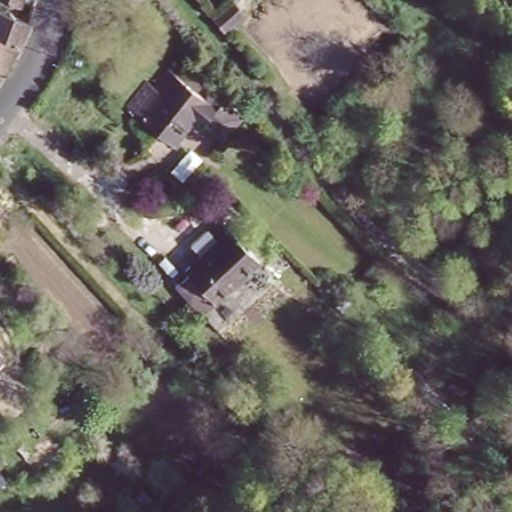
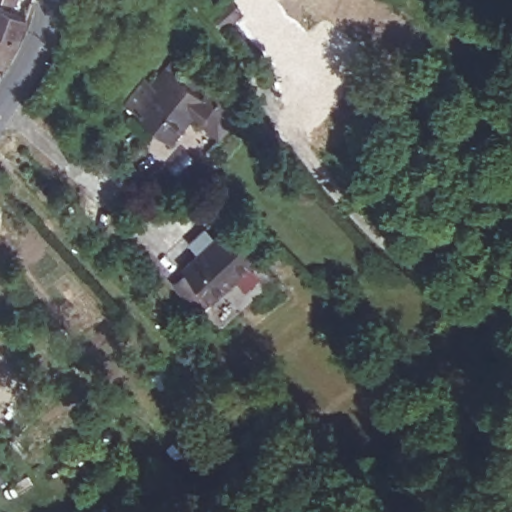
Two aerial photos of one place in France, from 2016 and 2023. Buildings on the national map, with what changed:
unchanged [(222,25),(212,14),(225,2),(227,0),(228,0),(238,10),(235,13),(245,22),(230,36),(222,25)]
unchanged [(27,19),(26,20),(24,28),(20,35),(17,43),(0,35),(0,10),(27,19)]
unchanged [(174,74),(207,100),(180,132),(148,105),(174,74)]
unchanged [(181,274),(197,259),(237,222),(265,252),(224,291),(208,306),(180,275),(181,274)]

